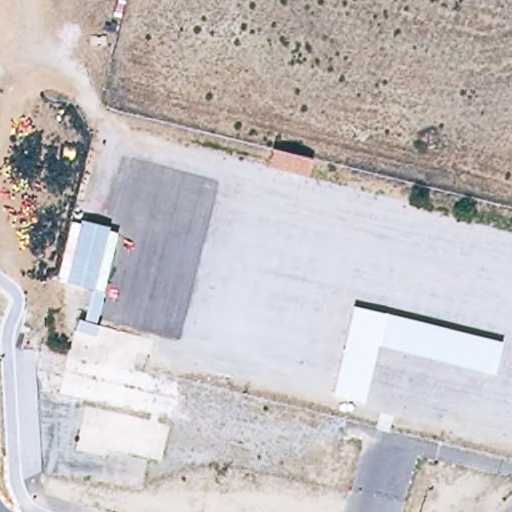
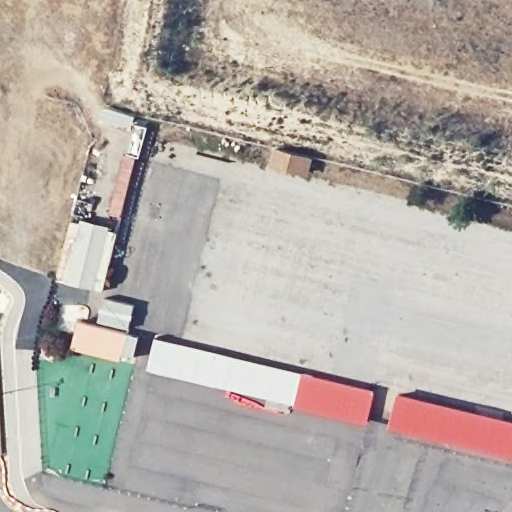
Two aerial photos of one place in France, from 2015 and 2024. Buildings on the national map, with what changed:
unchanged [(114,234),(101,298),(55,288),(68,225),(114,234)]
demolished [(499,346),(491,379),(375,351),(363,406),(331,398),(351,311),(499,346)]
new [(126,333),(120,360),(72,348),(78,321),(126,333)]
new [(375,390),(367,423),(147,371),(155,339),(375,390)]
new [(512,421),(512,462),(470,452),(389,428),(397,393),(512,421)]

